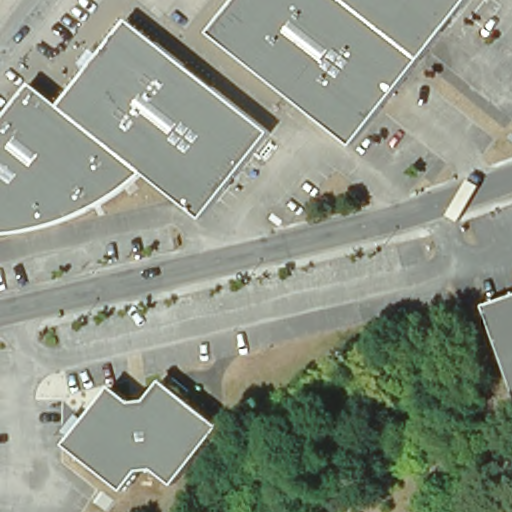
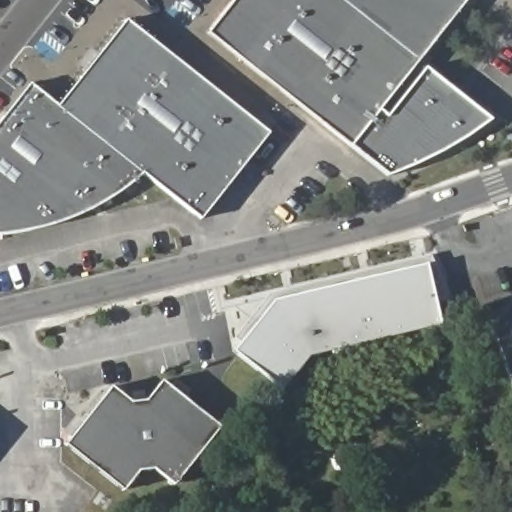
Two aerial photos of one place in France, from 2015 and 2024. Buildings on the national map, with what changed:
unchanged [(347,0),(418,57),(377,108),(347,146),(207,32),(233,0),(347,0)]
unchanged [(463,0),(418,57),(347,0),(463,0)]
unchanged [(143,176),(114,153),(57,107),(125,25),(268,140),(200,223),(143,176)]
new [(377,108),(388,116),(427,68),(491,119),(470,136),(416,164),(388,175),(347,146),(377,108)]
unchanged [(143,176),(137,185),(128,194),(115,205),(102,214),(90,222),(76,229),(60,236),(45,240),(29,244),(12,246),(0,246),(0,122),(30,85),(57,107),(114,153),(143,176)]
new [(310,356),(283,391),(233,351),(241,341),(235,337),(268,294),(430,254),(453,301),(437,304),(442,324),(310,356)]
unchanged [(483,300),(512,290),(512,383),(483,300)]
unchanged [(115,386),(139,406),(152,405),(164,389),(217,433),(175,486),(160,473),(139,478),(125,497),(66,448),(115,386)]

